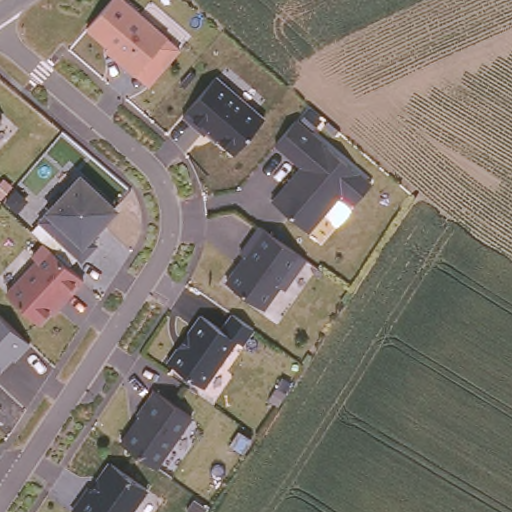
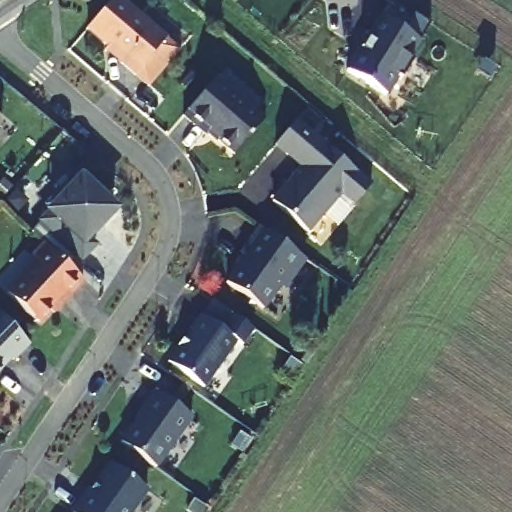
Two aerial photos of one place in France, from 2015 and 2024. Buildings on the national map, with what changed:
unchanged [(136,74),(121,62),(124,59),(88,27),(111,0),(122,0),(166,38),(136,74)]
new [(420,41),(409,59),(413,62),(401,81),(397,78),(387,96),(347,72),(381,17),(420,41)]
unchanged [(264,120),(233,155),(206,131),(204,135),(182,116),(214,78),(264,120)]
unchanged [(1,121),(0,123),(0,120),(1,121)]
unchanged [(295,121),(371,185),(320,243),(272,202),(301,167),(275,144),(295,121)]
unchanged [(113,209),(85,237),(94,245),(80,260),(39,221),(50,209),(45,204),(58,191),(63,196),(79,178),(113,209)]
unchanged [(296,252),(306,259),(288,284),(279,285),(263,309),(226,283),(238,266),(241,266),(247,258),(241,253),(259,226),(296,252)]
unchanged [(46,246),(82,280),(61,301),(58,299),(36,323),(5,294),(36,261),(32,256),(44,244),(46,246)]
unchanged [(199,386),(168,364),(164,361),(185,332),(198,314),(233,339),(199,386)]
unchanged [(18,333),(29,344),(14,360),(10,356),(2,356),(2,368),(0,370),(0,316),(18,333)]
unchanged [(188,416),(153,466),(118,441),(136,416),(133,414),(151,389),(188,416)]
unchanged [(144,488),(128,512),(70,512),(69,512),(86,489),(87,489),(88,489),(89,489),(92,491),(98,483),(95,482),(108,463),(144,488)]

